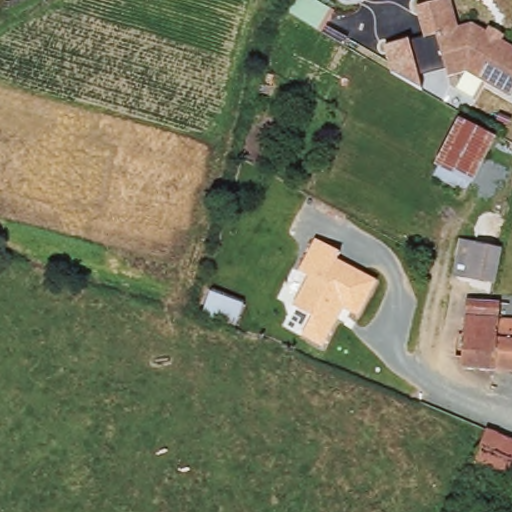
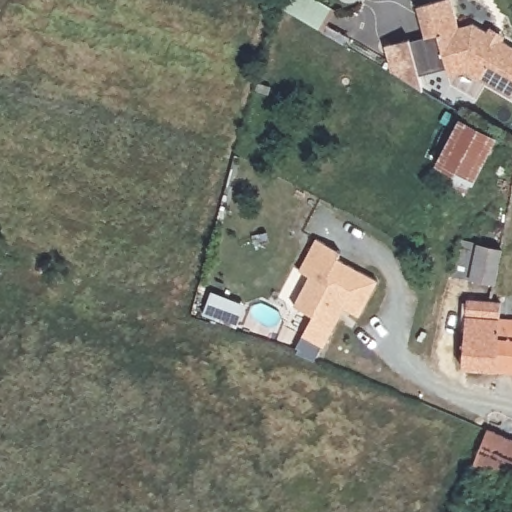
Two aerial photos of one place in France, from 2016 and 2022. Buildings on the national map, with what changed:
unchanged [(447,75),(437,35),(425,39),(415,5),(433,0),(454,0),(461,25),(472,21),(487,30),(490,25),(508,34),(504,40),(512,44),(512,95),(468,69),(447,75)]
unchanged [(421,91),(389,73),(383,46),(408,40),(421,91)]
unchanged [(466,190),(433,172),(459,121),(462,117),(496,135),(466,190)]
unchanged [(304,337),(312,316),(292,307),(309,277),(300,271),(317,240),(340,252),(337,258),(378,281),(359,316),(343,308),(323,346),(304,337)]
unchanged [(470,282),(451,277),(461,241),(480,246),(501,252),(492,288),(470,282)]
unchanged [(202,313),(212,291),(244,305),(236,327),(202,313)]
unchanged [(497,302),(497,311),(497,318),(492,367),(459,366),(464,299),(497,302)]
unchanged [(497,318),(512,320),(512,370),(492,367),(497,318)]
unchanged [(486,427),(489,427),(505,435),(512,438),(512,486),(470,467),(486,427)]

